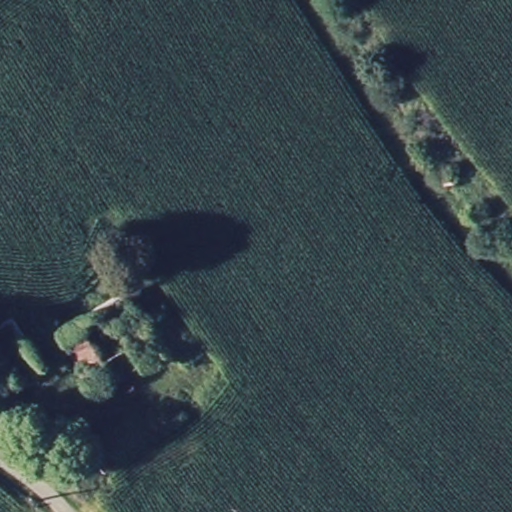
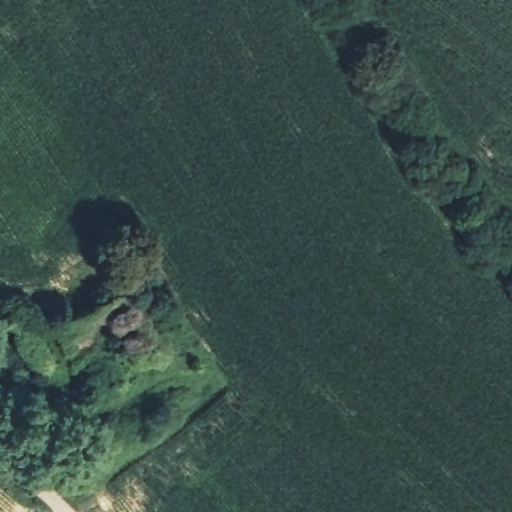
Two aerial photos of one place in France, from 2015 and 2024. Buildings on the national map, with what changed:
unchanged [(164,418),(169,434),(149,439),(144,422),(164,418)]
unchanged [(125,443),(121,425),(138,422),(141,440),(125,443)]

